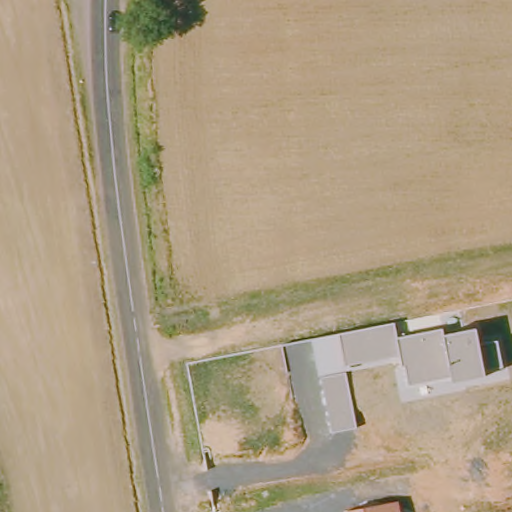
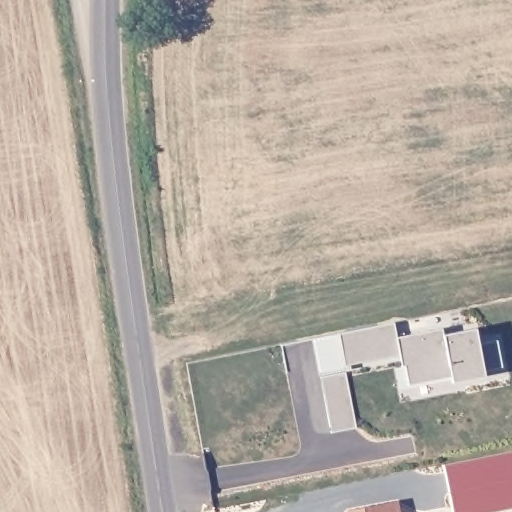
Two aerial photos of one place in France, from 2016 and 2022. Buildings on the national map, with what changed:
unchanged [(504,355),(502,367),(483,370),(485,376),(451,382),(450,379),(408,388),(399,390),(394,368),(401,366),(399,357),(350,365),(351,370),(345,371),(355,428),(333,432),(321,375),(317,375),(310,339),(393,323),(395,336),(442,328),(442,334),(476,328),(479,344),(497,341),(504,355)]
new [(494,512),(452,512),(442,465),(512,451),(512,508),(494,512)]
unchanged [(400,512),(345,512),(345,510),(399,501),(400,512)]

